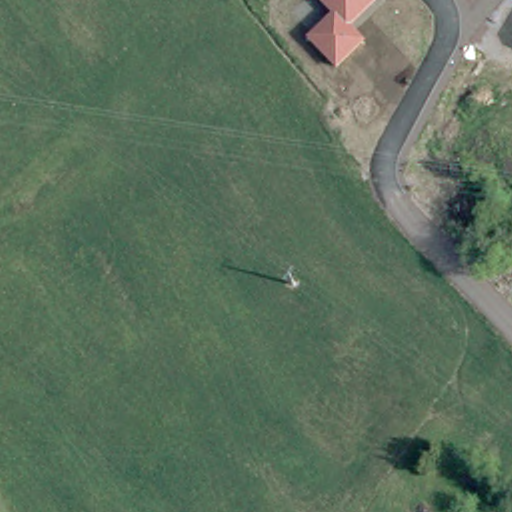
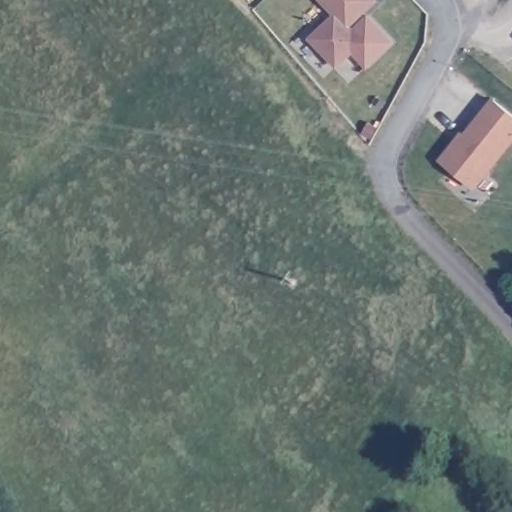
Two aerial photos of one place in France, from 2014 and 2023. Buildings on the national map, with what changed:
unchanged [(378,0),(351,27),(365,41),(336,69),(306,39),(331,14),(318,0),(378,0)]
new [(492,97),(512,112),(512,143),(475,189),(437,159),(460,130),(463,133),(492,97)]

